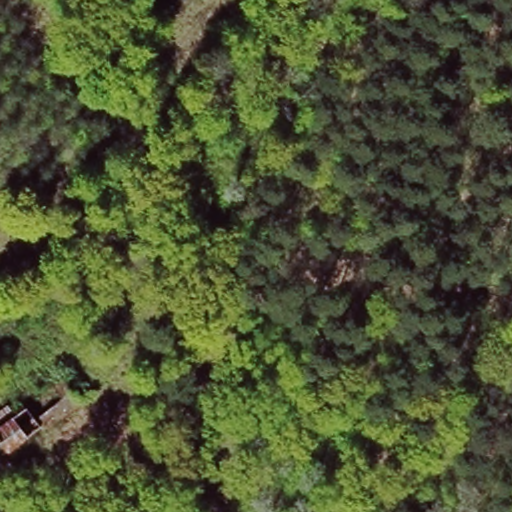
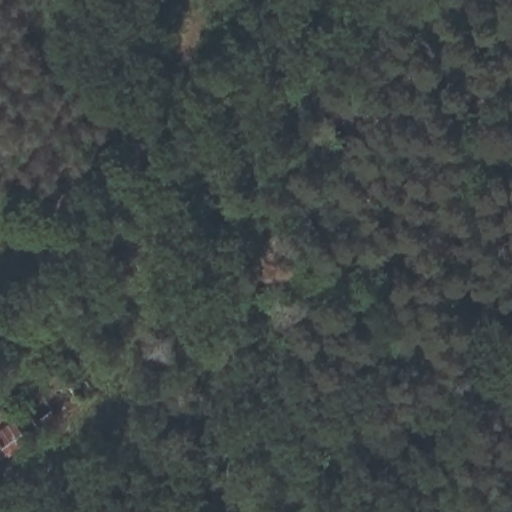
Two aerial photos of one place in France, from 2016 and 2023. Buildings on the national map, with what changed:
unchanged [(59,405),(77,396),(84,411),(0,452),(0,419),(54,393),(59,405)]

